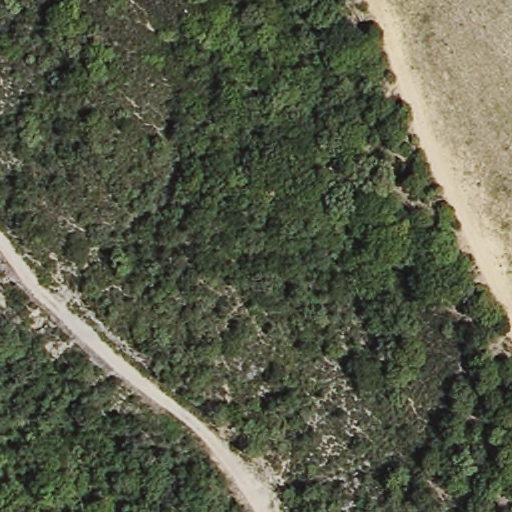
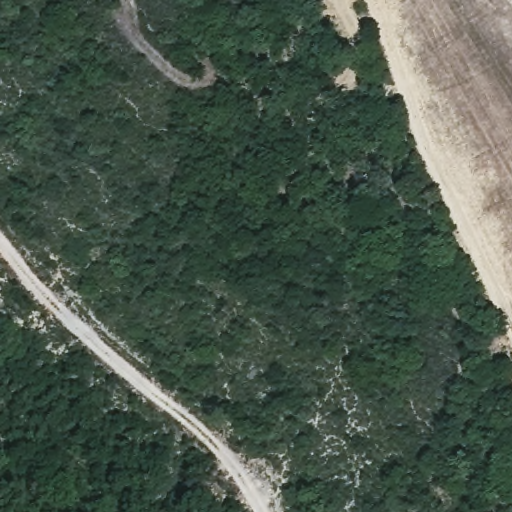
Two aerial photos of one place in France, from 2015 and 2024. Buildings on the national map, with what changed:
[]

